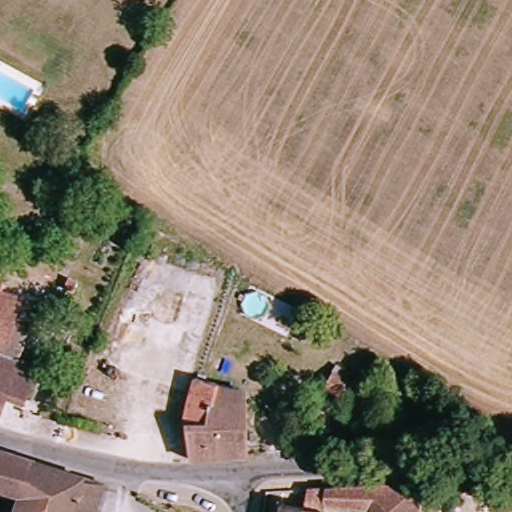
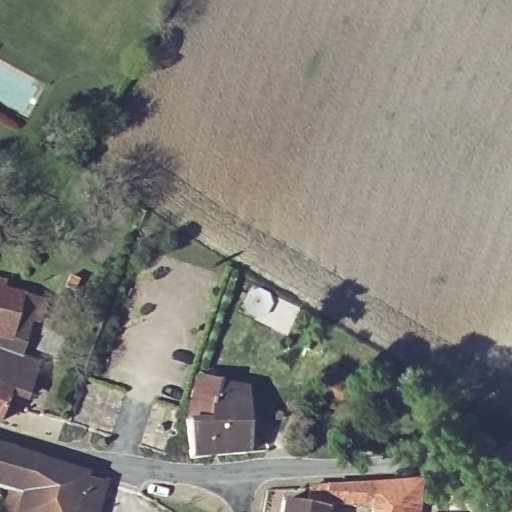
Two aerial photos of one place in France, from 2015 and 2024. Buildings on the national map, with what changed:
unchanged [(0,293),(0,287),(1,287),(0,293)]
unchanged [(36,329),(28,327),(19,359),(0,355),(0,296),(43,306),(36,329)]
unchanged [(328,365),(337,352),(356,364),(348,377),(328,365)]
unchanged [(18,362),(36,368),(26,402),(9,397),(0,394),(0,355),(19,359),(18,362)]
unchanged [(191,459),(187,424),(199,380),(224,386),(244,392),(241,402),(247,404),(251,459),(224,459),(198,461),(191,459)]
unchanged [(0,423),(0,394),(9,397),(0,423)]
unchanged [(3,512),(9,495),(0,493),(0,453),(35,464),(105,484),(98,512),(3,512)]
unchanged [(406,486),(420,487),(416,512),(372,512),(372,510),(325,503),(322,499),(324,489),(406,484),(406,486)]
unchanged [(324,512),(278,512),(279,505),(310,507),(311,499),(322,499),(325,503),(324,512)]

